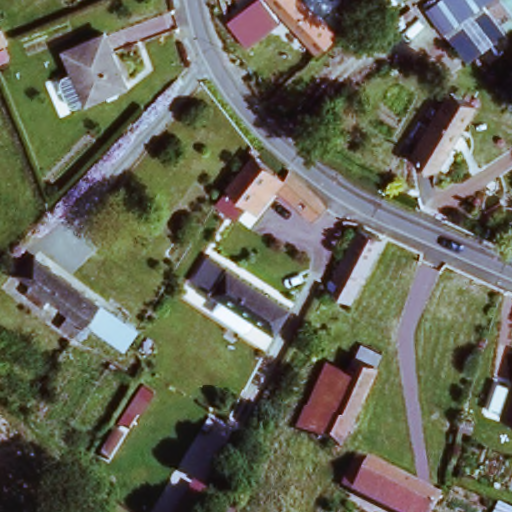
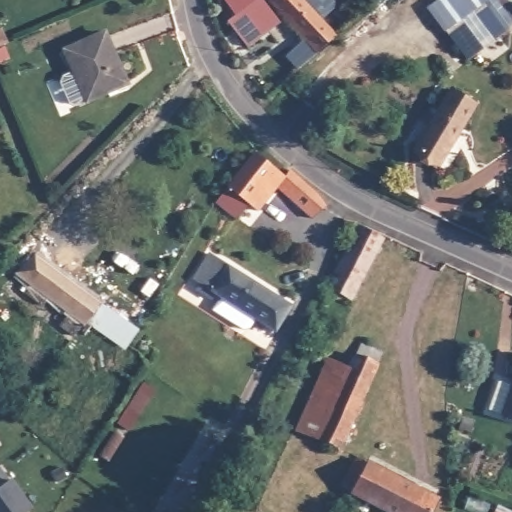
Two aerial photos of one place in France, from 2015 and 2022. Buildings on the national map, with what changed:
unchanged [(250,0),(266,0),(280,17),(248,42),(240,31),(259,15),(248,1),(250,0)]
unchanged [(336,31),(319,47),(274,0),(307,0),(336,31)]
unchanged [(512,25),(505,30),(511,42),(470,71),(425,9),(438,0),(512,0),(512,25)]
unchanged [(105,29),(127,79),(87,96),(66,46),(105,29)]
unchanged [(435,161),(410,146),(446,85),(470,100),(435,161)]
unchanged [(322,202),(309,215),(272,182),(252,207),(243,200),(231,216),(211,199),(252,149),(280,173),(285,167),(317,195),(322,202)]
unchanged [(358,222),(382,234),(352,294),(328,282),(358,222)]
unchanged [(205,249),(287,301),(270,327),(210,289),(207,294),(196,287),(199,282),(190,275),(205,249)]
unchanged [(76,313),(55,296),(47,306),(31,293),(37,284),(25,273),(40,256),(142,330),(137,338),(135,342),(131,346),(92,318),(79,336),(66,326),(76,313)]
unchanged [(317,433),(350,364),(355,350),(361,339),(382,348),(377,360),(340,443),(317,433)]
unchanged [(297,424),(328,354),(350,364),(317,433),(297,424)]
unchanged [(512,419),(498,414),(488,410),(498,383),(507,386),(512,387),(512,419)]
unchanged [(400,512),(354,488),(342,482),(357,453),(368,459),(437,495),(429,512),(400,512)]
new [(8,482),(9,482),(31,511),(30,512),(0,512),(0,472),(8,482)]
unchanged [(207,512),(184,512),(180,509),(193,486),(215,499),(207,512)]
unchanged [(237,508),(235,512),(215,512),(220,500),(237,508)]
unchanged [(510,512),(497,512),(499,507),(510,512)]

